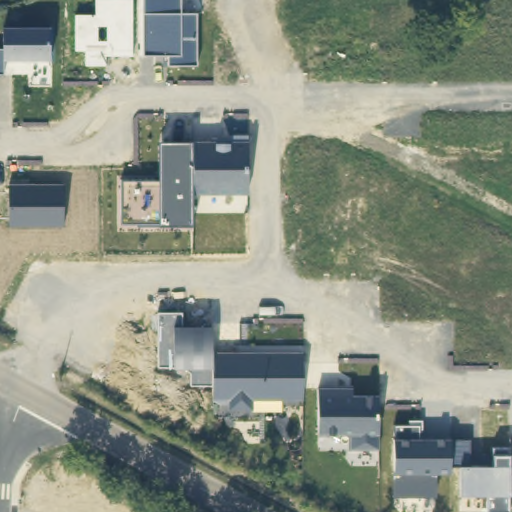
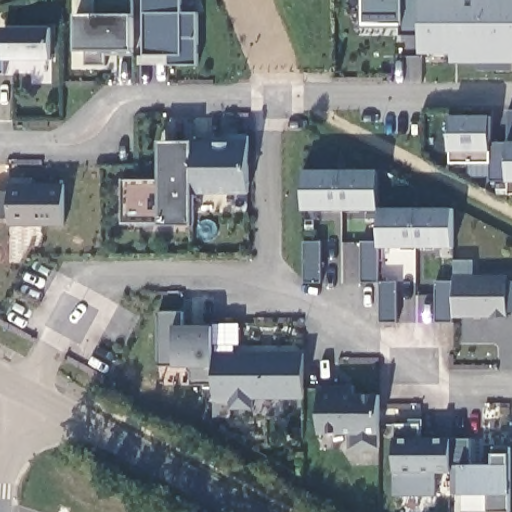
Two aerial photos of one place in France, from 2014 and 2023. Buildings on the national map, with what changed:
unchanged [(96,14),(97,0),(131,0),(131,57),(115,58),(114,53),(104,53),(103,65),(85,66),(85,53),(74,53),(75,14),(96,14)]
unchanged [(181,0),(181,16),(198,15),(198,65),(168,65),(168,56),(142,56),(142,0),(181,0)]
new [(483,64),(455,64),(434,64),(435,55),(423,54),(423,35),(401,35),(401,28),(362,27),(363,0),(512,0),(512,72),(483,72),(483,64)]
unchanged [(4,50),(4,29),(52,28),(53,60),(2,62),(1,74),(0,74),(0,51),(4,50)]
new [(491,143),(507,142),(506,111),(512,111),(512,195),(508,195),(507,183),(490,183),(490,164),(450,164),(451,154),(450,117),(491,116),(491,143)]
unchanged [(121,180),(160,180),(160,144),(246,141),(247,194),(191,195),(191,225),(157,226),(121,224),(121,180)]
new [(303,213),(303,170),(378,170),(379,209),(453,208),(453,248),(378,248),(379,284),(360,284),(360,242),(379,242),(379,213),(303,213)]
unchanged [(8,219),(0,219),(0,193),(8,193),(8,187),(61,186),(63,228),(8,227),(8,219)]
new [(303,242),(321,242),(321,284),(303,284),(303,242)]
unchanged [(453,276),(507,277),(507,282),(512,282),(512,312),(507,312),(507,318),(453,318),(453,323),(435,323),(436,282),(453,282),(453,276)]
new [(397,282),(397,323),(379,323),(379,284),(379,282),(397,282)]
unchanged [(212,369),(212,386),(191,386),(191,374),(184,368),(176,368),(159,368),(158,312),(184,312),(184,326),(211,325),(212,353),(212,369)]
unchanged [(252,402),(252,409),(228,410),(228,401),(213,401),(212,353),(301,354),(302,403),(252,402)]
unchanged [(350,451),(349,434),(318,435),(318,392),(356,391),(375,403),(377,448),(350,451)]
unchanged [(486,496),(459,497),(457,476),(436,476),(435,498),(393,497),(395,438),(394,426),(420,426),(422,436),(427,439),(450,439),(452,443),(469,443),(470,466),(494,466),(493,456),(507,455),(508,495),(508,512),(487,512),(486,496)]

